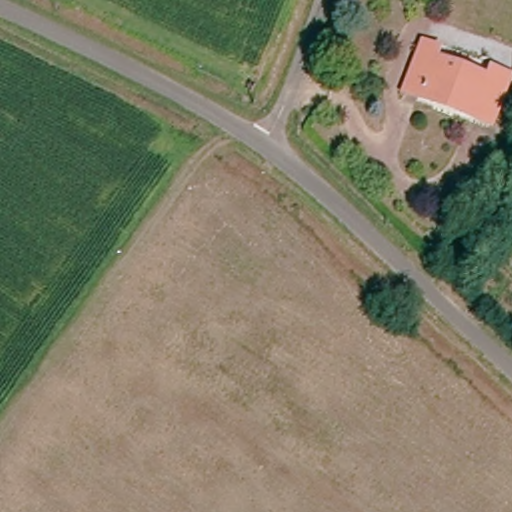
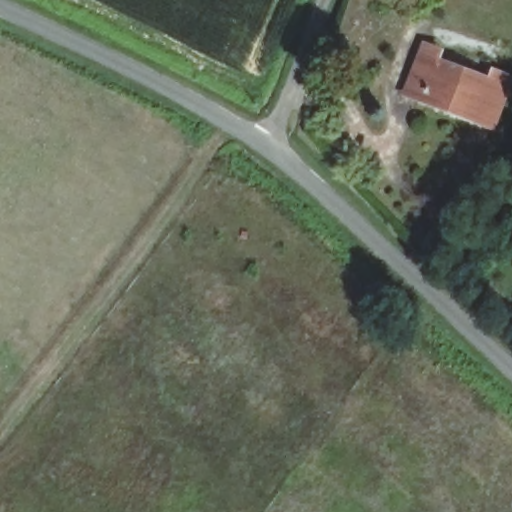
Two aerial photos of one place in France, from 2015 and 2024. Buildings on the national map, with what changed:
unchanged [(464,125),(448,116),(429,105),(413,96),(400,88),(404,82),(426,43),(440,51),(435,60),(483,87),(488,79),(506,89),(483,130),(481,134),(464,125)]

